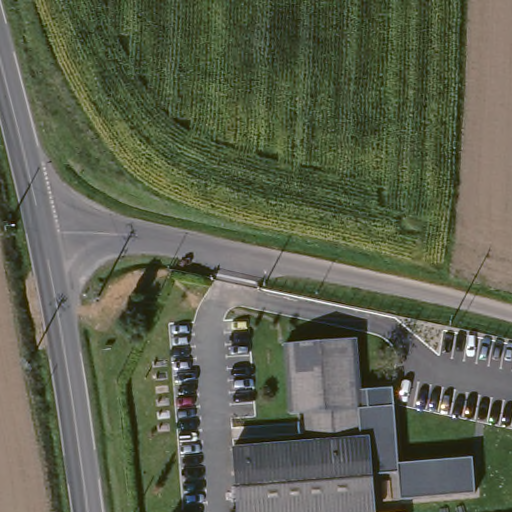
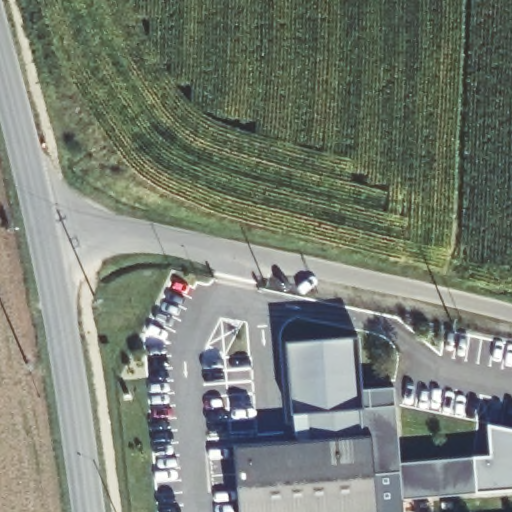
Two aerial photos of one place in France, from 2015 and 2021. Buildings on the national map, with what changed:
unchanged [(305,437),(297,438),(296,426),(304,425),(304,417),(289,418),(283,348),(353,342),(359,412),(354,412),(356,442),(366,441),(372,512),(235,512),(230,453),(306,446),(305,437)]
unchanged [(476,493),(401,498),(399,471),(369,474),(366,441),(356,442),(354,412),(359,412),(357,390),(393,387),(400,463),(474,457),(476,493)]
new [(512,430),(512,490),(476,493),(474,457),(489,457),(487,425),(512,430)]

